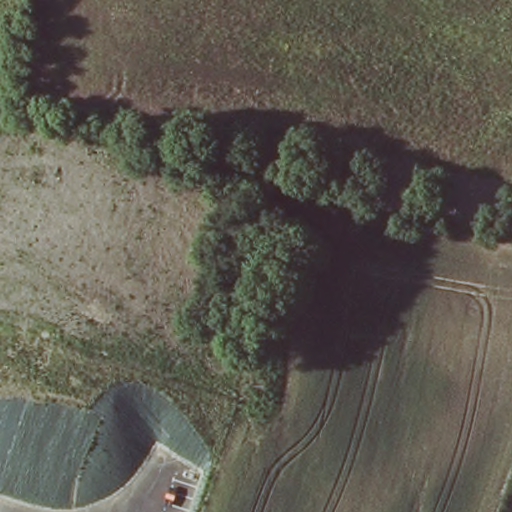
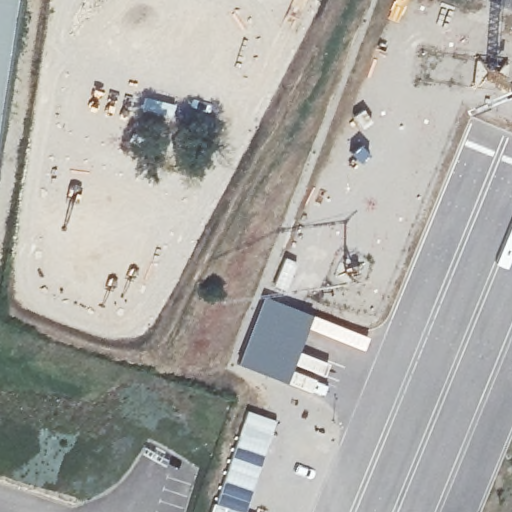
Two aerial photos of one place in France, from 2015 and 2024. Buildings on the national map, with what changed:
new [(16,0),(8,48),(0,101),(0,0),(16,0)]
new [(264,295),(313,314),(287,383),(239,365),(264,295)]
new [(247,410),(277,420),(264,456),(235,446),(247,410)]
new [(235,446),(264,456),(245,512),(243,512),(214,503),(235,446)]

